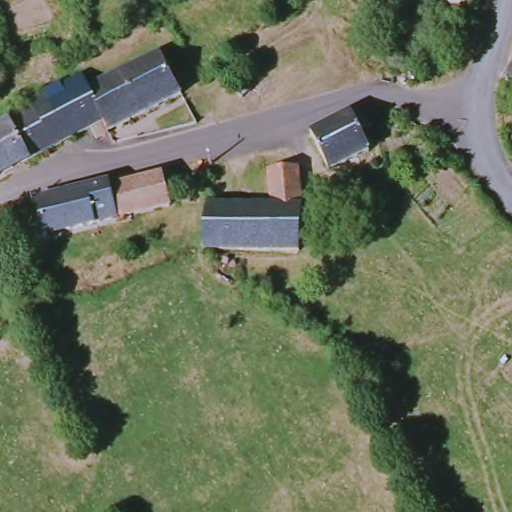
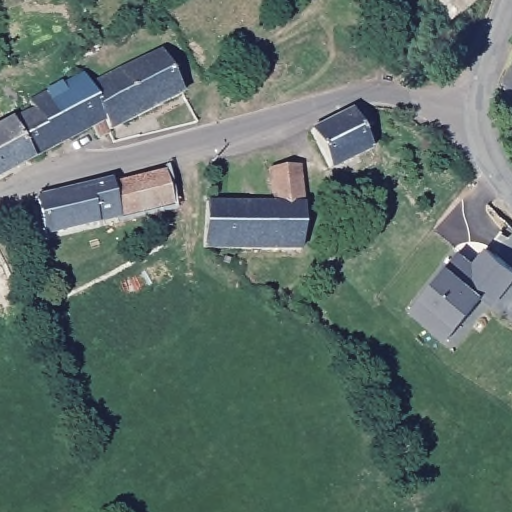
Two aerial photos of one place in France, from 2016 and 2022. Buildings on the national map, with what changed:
unchanged [(454,21),(438,0),(481,0),(454,21)]
unchanged [(7,122),(81,77),(89,90),(159,54),(180,94),(109,134),(104,124),(32,162),(0,177),(0,126),(7,122)]
unchanged [(512,89),(507,86),(512,77),(512,89)]
unchanged [(308,130),(364,108),(375,131),(364,136),(371,151),(329,172),(308,130)]
unchanged [(202,196),(265,201),(268,165),(299,167),(303,198),(299,252),(197,249),(202,196)]
unchanged [(42,202),(117,180),(118,185),(171,170),(180,205),(120,221),(100,227),(53,240),(42,202)]
new [(414,309),(461,251),(477,264),(490,247),(512,265),(512,282),(496,302),(486,294),(462,324),(450,339),(430,322),(414,309)]

